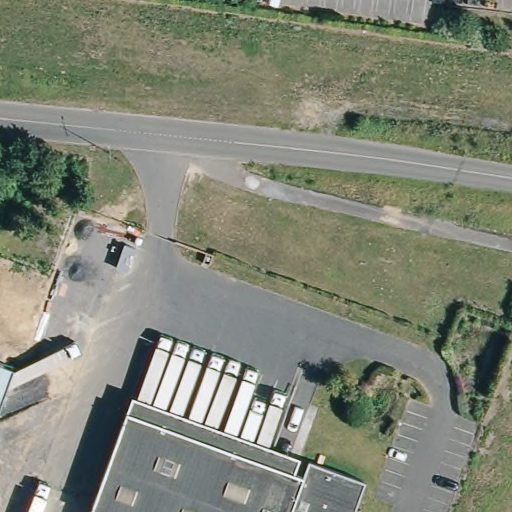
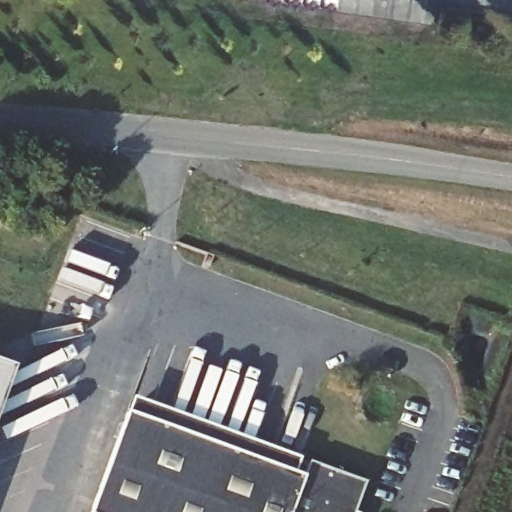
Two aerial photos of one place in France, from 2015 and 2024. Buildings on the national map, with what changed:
unchanged [(0,411),(0,364),(15,370),(0,411)]
unchanged [(126,398),(295,458),(290,471),(234,451),(162,425),(124,410),(126,398)]
unchanged [(162,425),(234,451),(290,471),(298,475),(304,463),(360,482),(350,510),(353,512),(86,512),(124,410),(162,425)]

